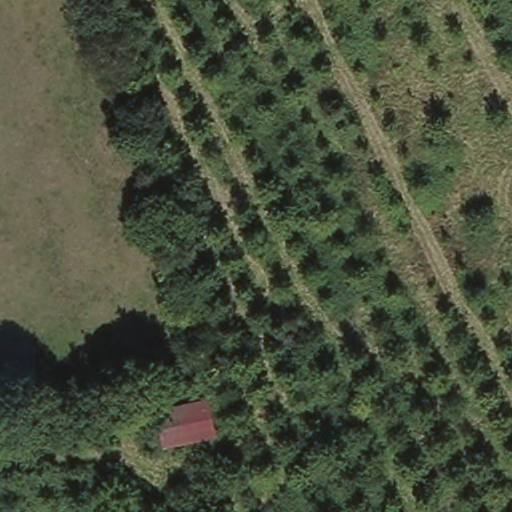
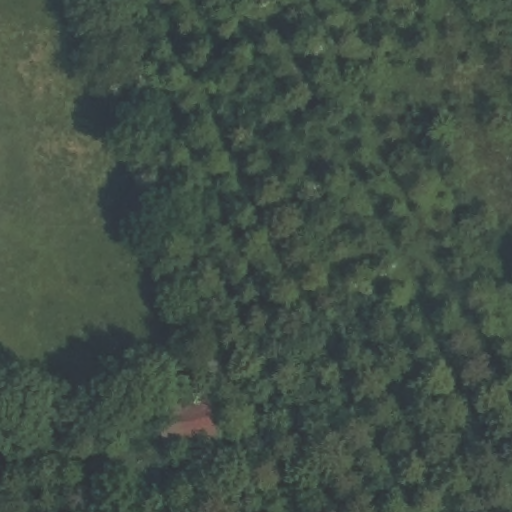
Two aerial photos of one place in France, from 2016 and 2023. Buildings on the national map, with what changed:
unchanged [(155,403),(209,392),(219,434),(164,450),(155,403)]

